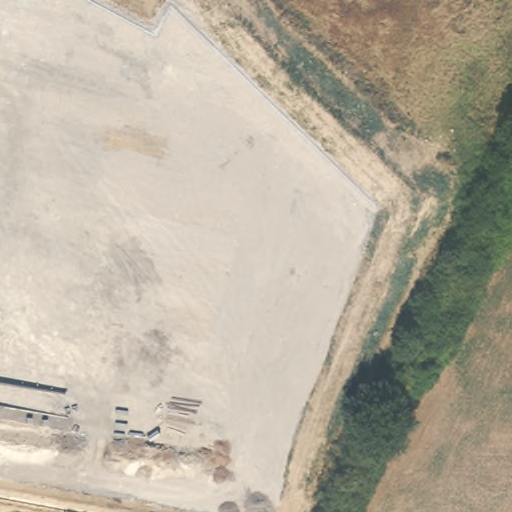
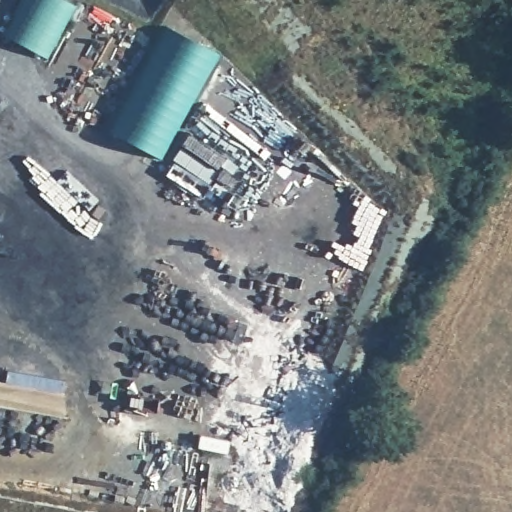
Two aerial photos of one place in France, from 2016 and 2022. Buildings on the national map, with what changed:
new [(0,35),(0,34),(20,0),(62,0),(78,9),(49,62),(0,35)]
new [(161,161),(107,131),(163,25),(217,55),(161,161)]

